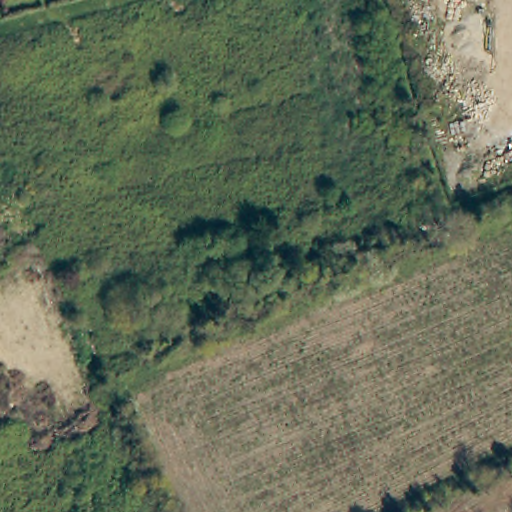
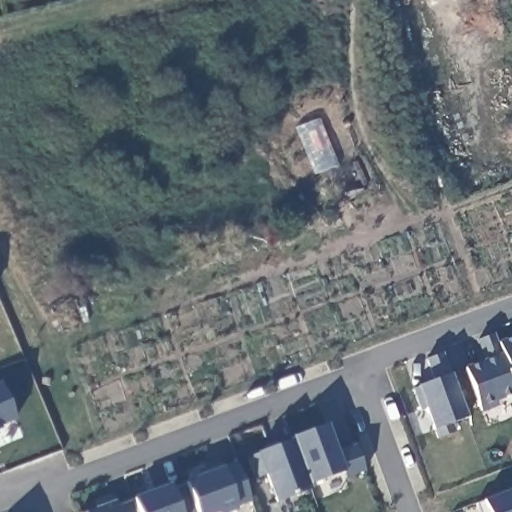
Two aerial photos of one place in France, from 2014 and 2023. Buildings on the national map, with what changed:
new [(512,392),(496,399),(498,403),(481,410),(479,405),(465,368),(486,360),(478,339),(494,333),(512,380),(512,392)]
new [(512,336),(512,380),(498,342),(512,336)]
new [(467,416),(452,422),(455,430),(438,436),(435,428),(434,428),(426,406),(421,408),(413,387),(418,386),(418,385),(434,379),(426,358),(443,352),(467,416)]
new [(2,384),(17,420),(1,427),(2,429),(0,429),(0,385),(2,384)]
new [(345,479),(343,471),(308,483),(292,439),(289,436),(327,422),(337,449),(356,442),(366,471),(345,479)]
new [(292,439),(312,492),(274,505),(255,453),(292,439)]
new [(237,463),(250,501),(238,505),(217,512),(197,512),(186,481),(225,467),(237,463)]
new [(117,502),(119,506),(186,481),(197,512),(81,512),(116,499),(117,502)]
new [(512,512),(479,512),(484,511),(482,502),(512,491),(512,512)]

